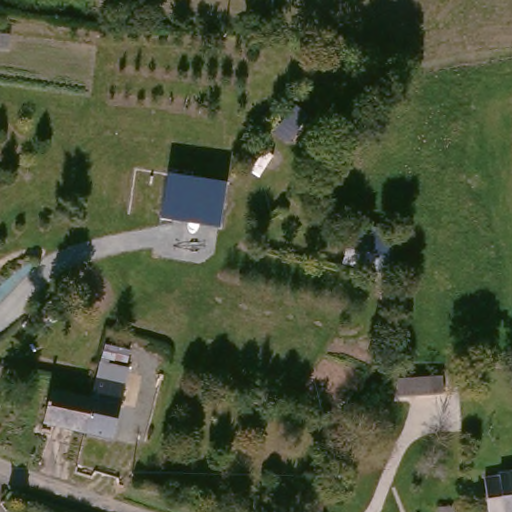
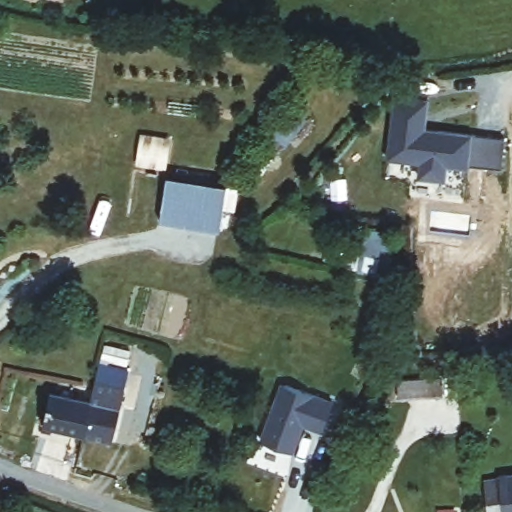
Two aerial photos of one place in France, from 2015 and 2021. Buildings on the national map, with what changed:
new [(426,128),(473,133),(505,138),(502,169),(469,165),(469,169),(448,165),(446,180),(417,178),(418,163),(385,159),(394,94),(430,99),(426,128)]
unchanged [(226,184),(220,229),(161,218),(167,175),(226,184)]
unchanged [(358,250),(362,230),(393,237),(387,275),(342,267),(344,250),(358,250)]
unchanged [(89,384),(93,362),(129,371),(124,391),(113,442),(79,434),(86,397),(89,384)]
unchanged [(442,393),(414,395),(413,377),(441,374),(442,393)]
new [(334,399),(322,431),(304,424),(294,452),(259,439),(279,382),(334,399)]
unchanged [(79,434),(40,426),(47,388),(86,397),(79,434)]
unchanged [(486,482),(512,480),(512,512),(488,512),(486,482)]

